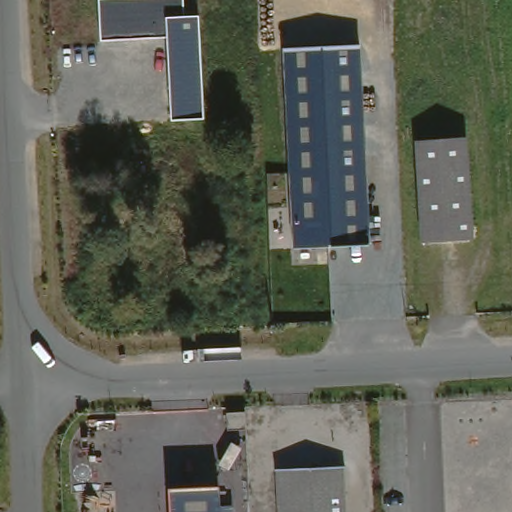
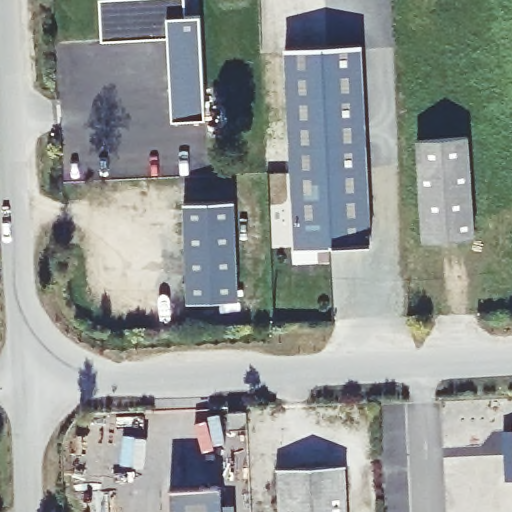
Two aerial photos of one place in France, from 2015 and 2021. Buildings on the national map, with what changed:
unchanged [(170,30),(102,33),(99,0),(186,0),(188,16),(200,15),(207,117),(176,118),(170,30)]
unchanged [(289,48),(364,45),(373,243),(296,247),(289,48)]
unchanged [(479,234),(428,238),(421,135),(472,132),(479,234)]
new [(183,204),(235,203),(237,300),(187,302),(183,204)]
unchanged [(247,429),(228,430),(227,412),(246,411),(247,429)]
unchanged [(286,512),(283,464),(348,461),(351,512),(286,512)]
unchanged [(221,512),(173,512),(171,486),(219,485),(221,512)]

